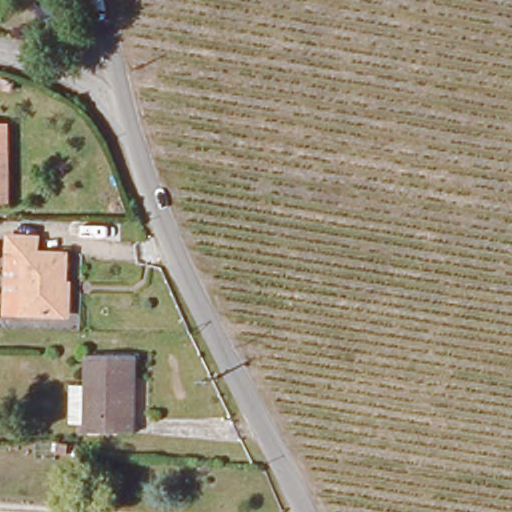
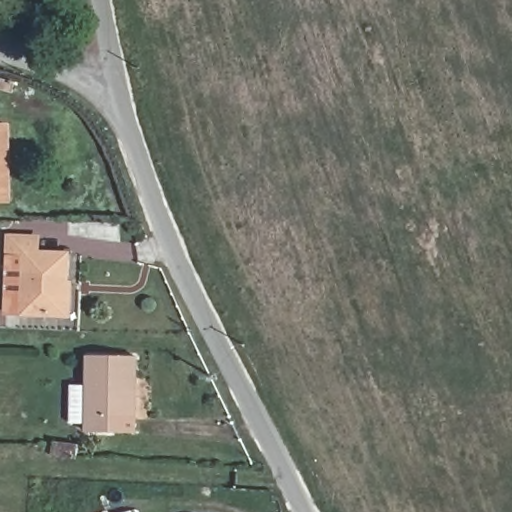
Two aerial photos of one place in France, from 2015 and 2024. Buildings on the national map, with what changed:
unchanged [(0,124),(4,124),(5,200),(0,200),(0,124)]
unchanged [(30,257),(59,257),(58,317),(19,316),(18,258),(2,258),(3,241),(31,242),(30,257)]
unchanged [(132,359),(132,436),(85,436),(87,358),(132,359)]
unchanged [(66,448),(56,448),(56,438),(66,438),(66,448)]

